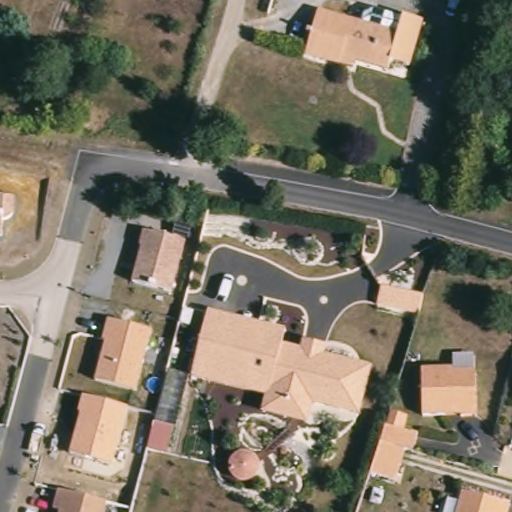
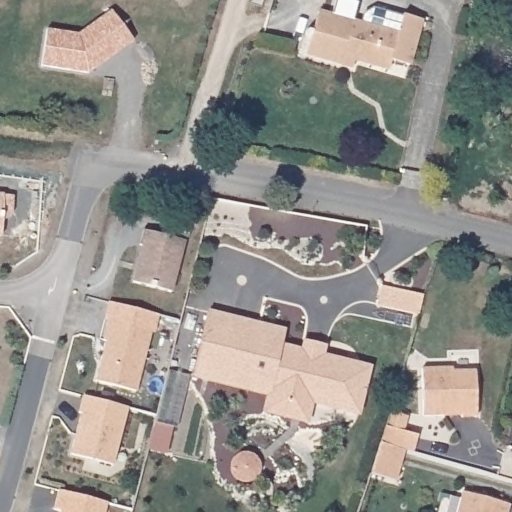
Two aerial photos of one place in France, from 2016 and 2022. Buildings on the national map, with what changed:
new [(46,30),(78,34),(111,10),(132,41),(87,73),(40,66),(46,30)]
unchanged [(401,34),(408,13),(426,20),(411,66),(393,60),(388,77),(342,62),(340,70),(306,59),(322,10),(401,34)]
unchanged [(3,217),(1,235),(0,234),(0,192),(15,193),(15,216),(3,217)]
unchanged [(129,281),(148,216),(189,227),(172,293),(129,281)]
unchanged [(425,293),(421,313),(378,303),(382,285),(425,293)]
unchanged [(273,407),(278,390),(202,368),(220,303),(247,311),(297,326),(293,340),(313,346),(315,337),(336,342),(333,352),(357,358),(380,364),(379,371),(367,411),(321,398),(315,418),(273,407)]
unchanged [(152,330),(136,392),(92,380),(104,342),(100,340),(106,317),(152,330)]
unchanged [(470,415),(455,416),(455,414),(416,415),(415,367),(445,367),(445,371),(468,370),(470,415)]
new [(167,370),(187,376),(179,410),(159,404),(167,370)]
unchanged [(114,465),(71,453),(80,415),(76,414),(81,396),(129,408),(114,465)]
unchanged [(394,411),(395,411),(410,416),(406,430),(420,435),(415,452),(414,451),(402,447),(395,472),(376,467),(384,442),(394,411)]
unchanged [(58,490),(107,501),(105,512),(61,512),(61,511),(54,509),(58,490)]
unchanged [(509,507),(508,512),(457,512),(462,494),(509,507)]

